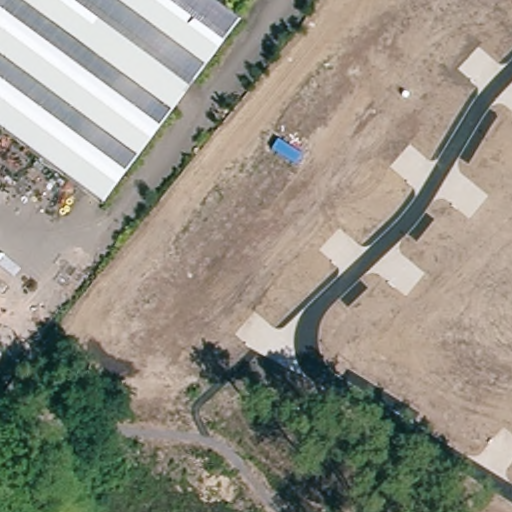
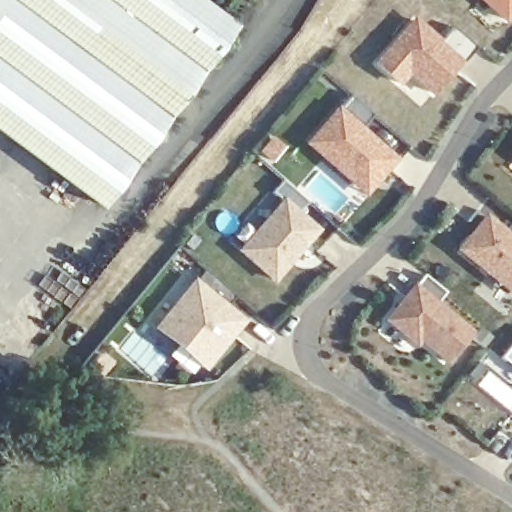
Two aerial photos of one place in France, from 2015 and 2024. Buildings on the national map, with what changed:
unchanged [(221,5),(247,25),(111,207),(107,204),(0,124),(0,0),(214,0),(221,5)]
unchanged [(505,20),(483,0),(512,0),(512,12),(505,20)]
new [(442,42),(452,28),(477,48),(434,98),(410,78),(401,87),(375,64),(416,18),(442,42)]
new [(355,184),(337,169),(340,166),(312,140),(351,95),(373,115),(361,130),(394,159),(377,179),(365,193),(355,184)]
new [(283,202),(317,231),(273,280),(241,252),(283,202)]
new [(507,235),(512,239),(512,285),(492,269),(488,274),(459,250),(486,218),(507,235)]
new [(155,329),(193,281),(197,283),(207,271),(237,296),(227,308),(247,321),(206,371),(155,329)]
new [(403,300),(423,275),(445,293),(436,305),(470,332),(447,362),(420,340),(416,345),(386,321),(396,309),(403,300)]
new [(502,359),(512,347),(512,368),(502,359)]

